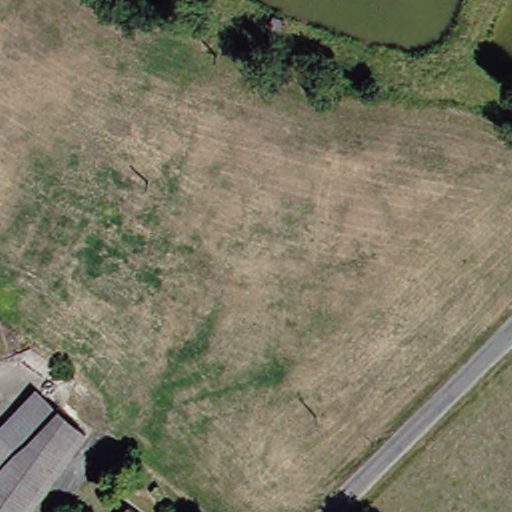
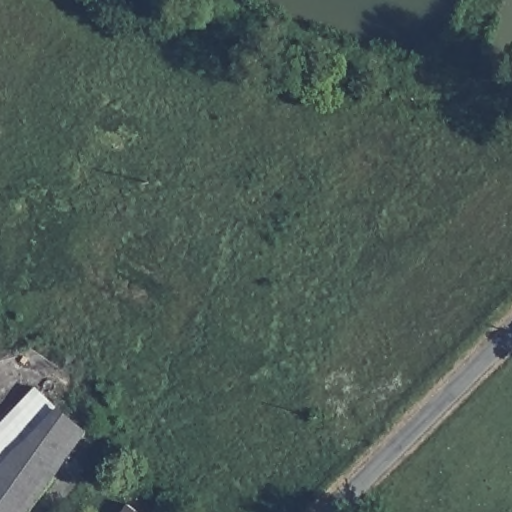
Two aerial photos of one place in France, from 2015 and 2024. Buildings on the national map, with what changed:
unchanged [(20,512),(0,512),(0,419),(27,384),(87,431),(20,512)]
unchanged [(124,512),(117,512),(119,508),(124,512)]

